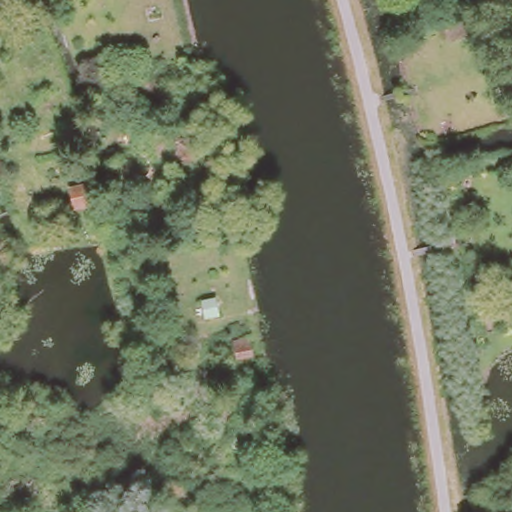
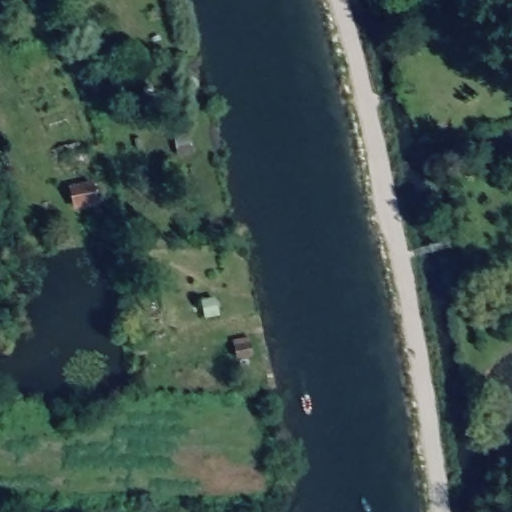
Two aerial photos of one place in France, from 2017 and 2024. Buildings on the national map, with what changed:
unchanged [(193,140),(195,149),(177,151),(176,142),(193,140)]
unchanged [(70,191),(90,190),(90,206),(73,207),(70,191)]
unchanged [(251,333),(255,354),(236,357),(233,341),(251,333)]

